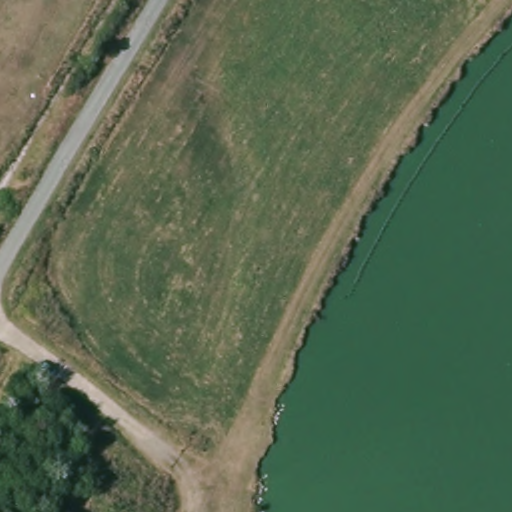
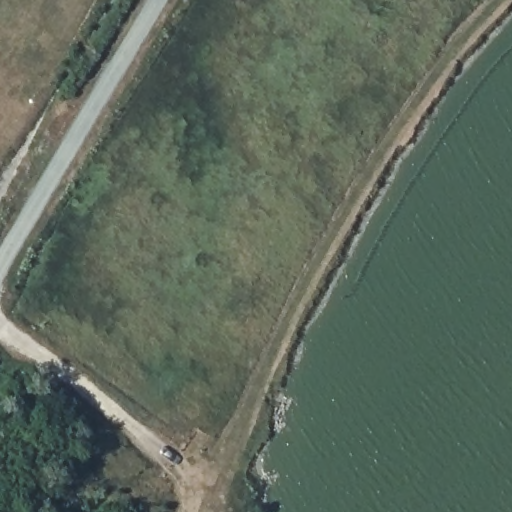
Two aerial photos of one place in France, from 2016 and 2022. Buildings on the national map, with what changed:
[]

